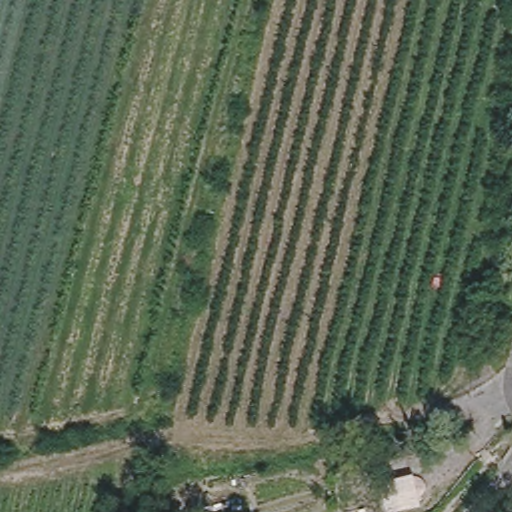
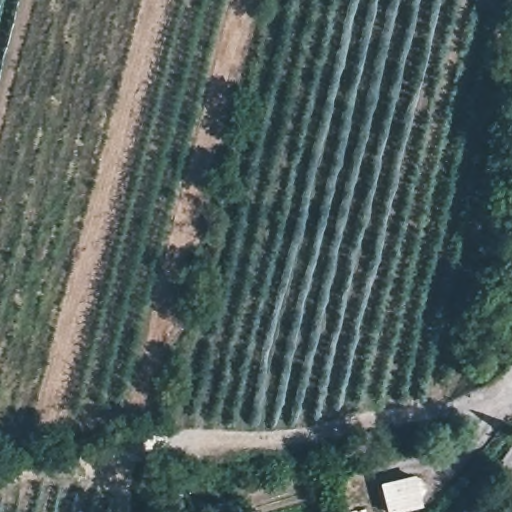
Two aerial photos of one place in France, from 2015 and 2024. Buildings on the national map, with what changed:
unchanged [(422,503),(388,512),(387,512),(380,481),(414,472),(422,503)]

